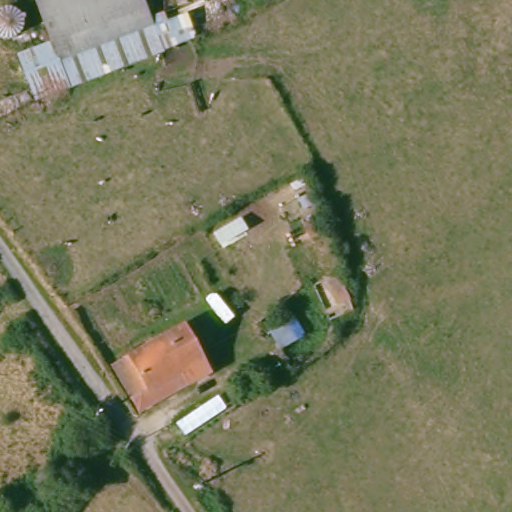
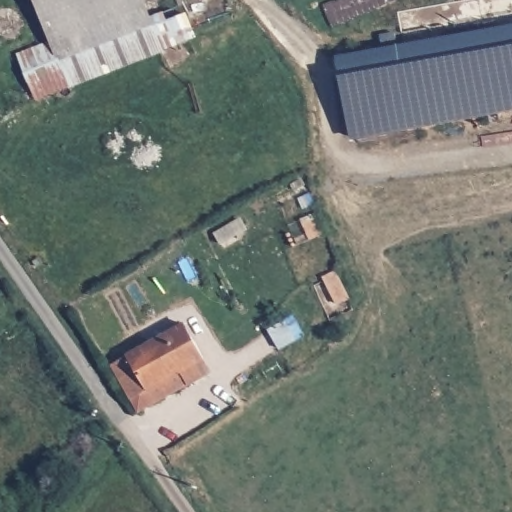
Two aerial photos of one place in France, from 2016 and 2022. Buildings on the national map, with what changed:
unchanged [(145,13),(157,45),(25,95),(10,48),(43,34),(30,0),(140,0),(145,13)]
unchanged [(145,13),(178,0),(180,0),(192,32),(157,45),(145,13)]
new [(512,23),(512,107),(356,134),(342,53),(512,23)]
unchanged [(120,391),(108,356),(178,327),(185,325),(203,375),(195,378),(177,386),(127,407),(120,391)]

